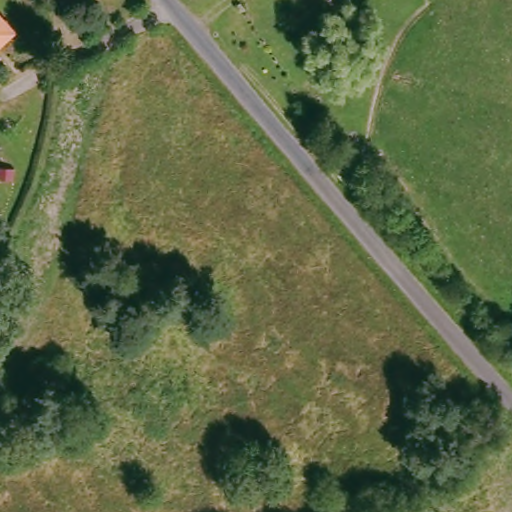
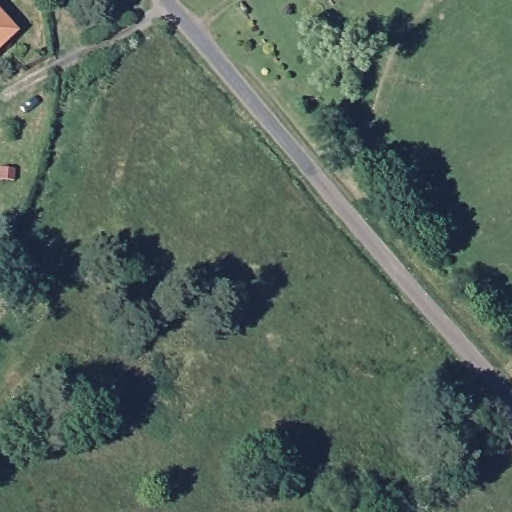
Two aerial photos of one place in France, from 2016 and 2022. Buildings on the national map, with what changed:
unchanged [(0,49),(0,10),(19,31),(0,49)]
unchanged [(16,174),(13,185),(0,182),(0,170),(16,174)]

